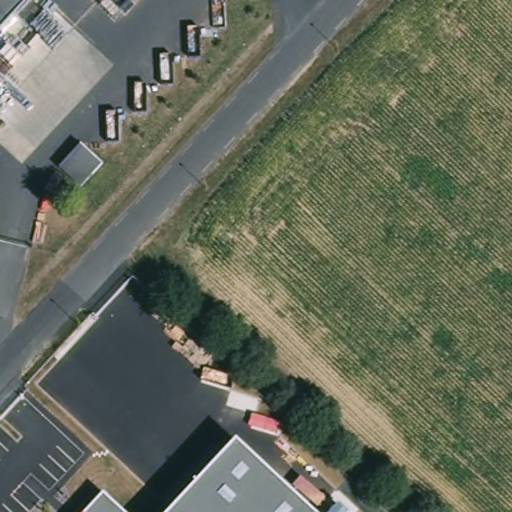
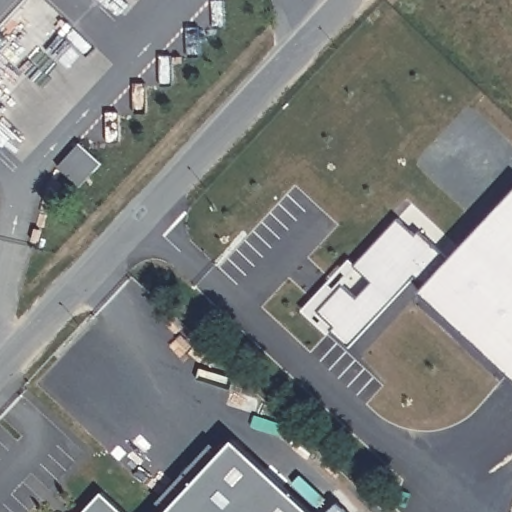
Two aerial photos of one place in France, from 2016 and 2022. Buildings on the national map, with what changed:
unchanged [(0,29),(0,0),(27,0),(0,29)]
new [(80,142),(102,163),(92,174),(80,187),(58,166),(70,153),(80,142)]
new [(420,230),(451,258),(512,193),(512,376),(420,291),(426,285),(416,275),(350,347),(332,329),(328,333),(303,309),(353,256),(358,261),(399,217),(417,233),(420,230)]
unchanged [(310,512),(168,512),(233,441),(310,512)]
unchanged [(84,512),(101,494),(121,512),(84,512)]

